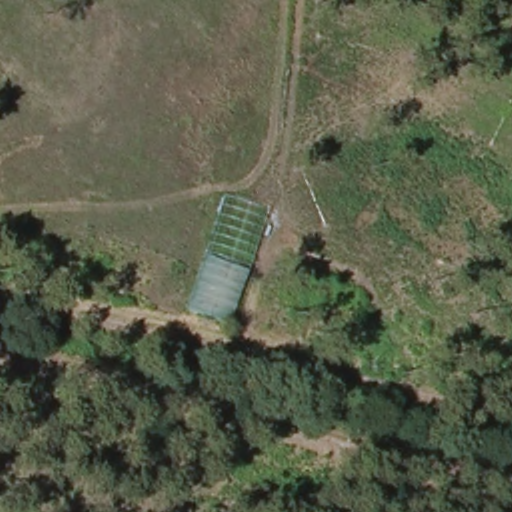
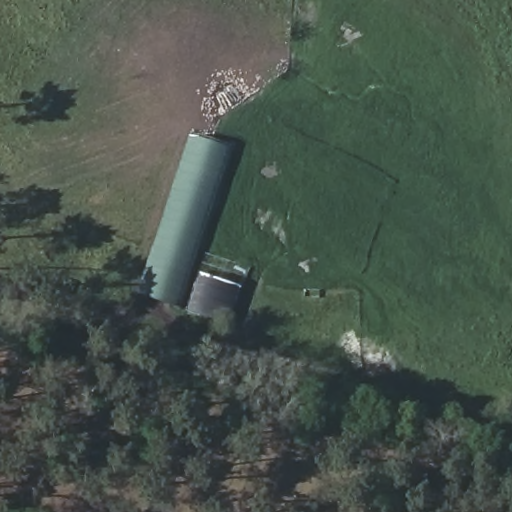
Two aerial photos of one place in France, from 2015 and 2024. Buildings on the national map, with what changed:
new [(191,132),(234,145),(179,307),(140,294),(191,132)]
demolished [(230,319),(189,308),(220,219),(265,227),(230,319)]
new [(254,267),(234,322),(179,307),(198,250),(254,267)]

